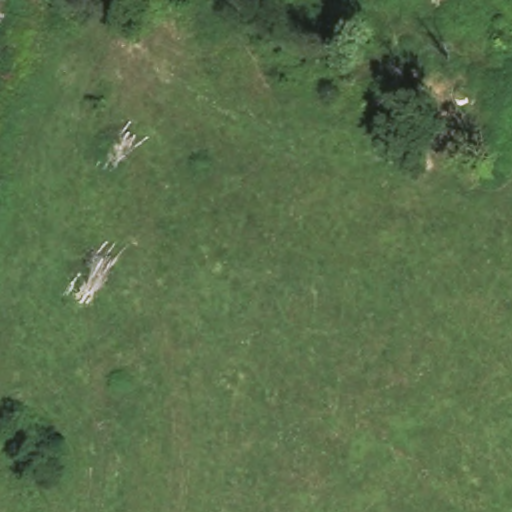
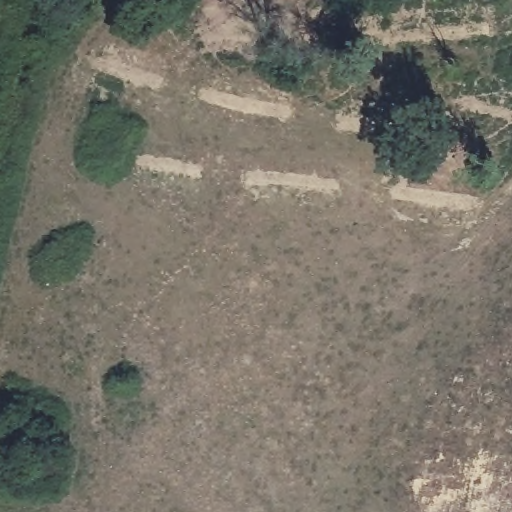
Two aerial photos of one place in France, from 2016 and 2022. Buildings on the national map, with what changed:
[]

